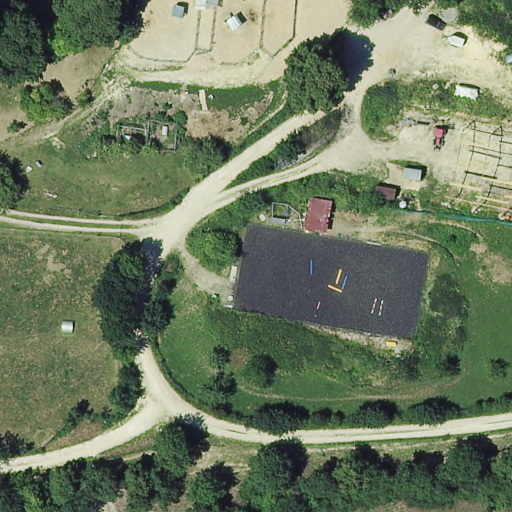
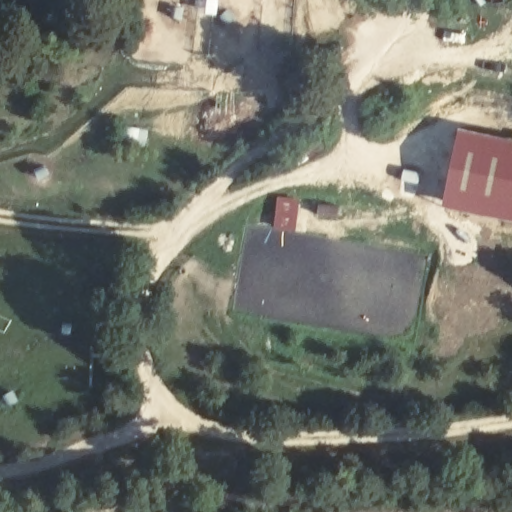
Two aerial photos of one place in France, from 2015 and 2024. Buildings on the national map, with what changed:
demolished [(439,120),(407,96),(419,80),(449,103),(439,120)]
new [(512,141),(512,223),(443,209),(458,130),(512,141)]
new [(326,236),(304,232),(309,200),(331,203),(326,236)]

